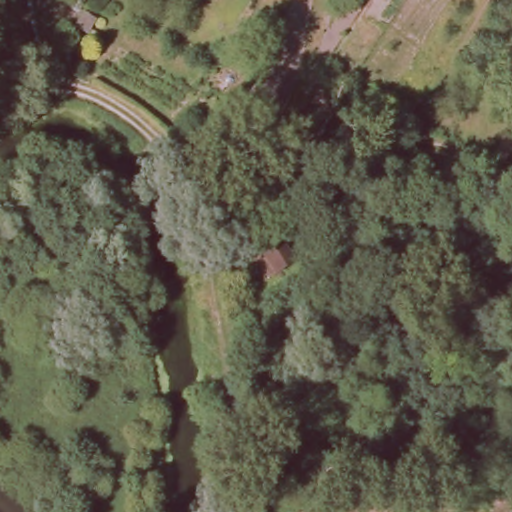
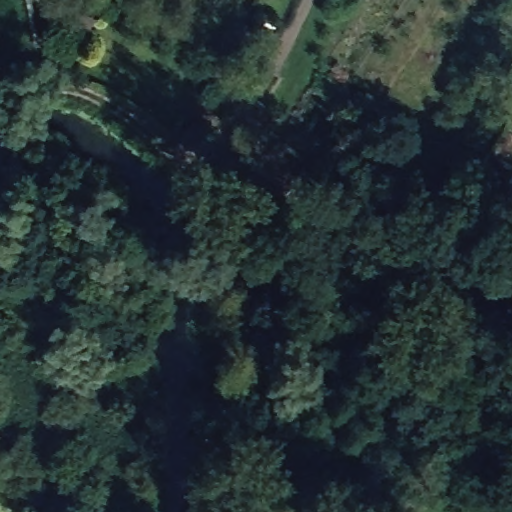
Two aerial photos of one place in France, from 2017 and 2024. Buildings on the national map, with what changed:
unchanged [(275,272),(259,247),(285,232),(297,257),(275,272)]

